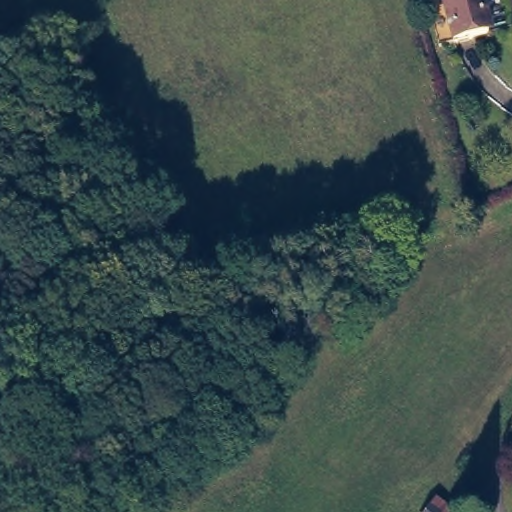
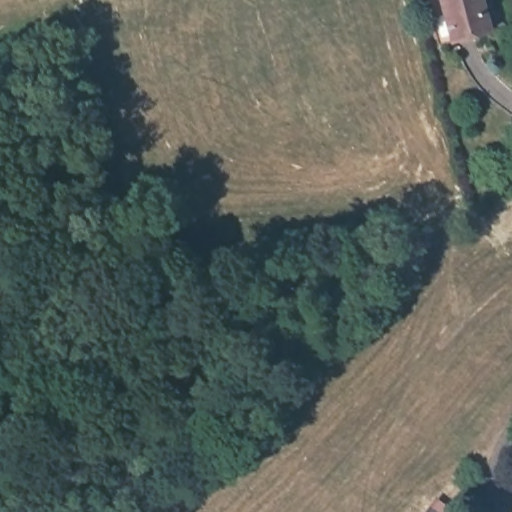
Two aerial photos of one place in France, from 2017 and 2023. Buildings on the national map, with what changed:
unchanged [(445,0),(481,0),(482,7),(485,6),(487,11),(484,11),(488,27),(455,36),(445,0)]

